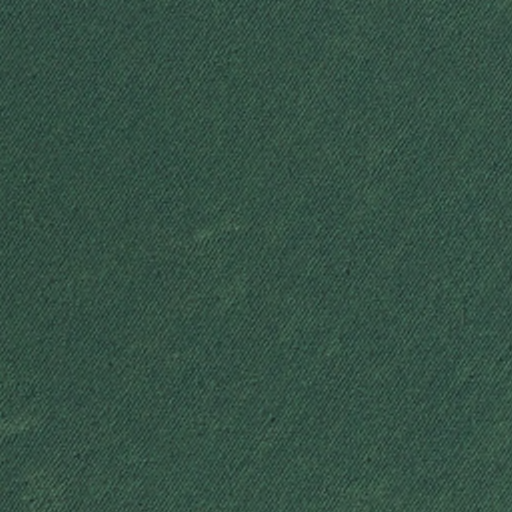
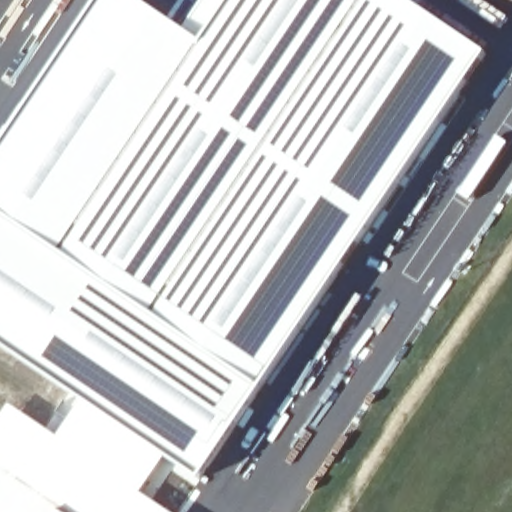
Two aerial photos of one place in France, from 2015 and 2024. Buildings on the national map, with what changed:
new [(7,137),(101,0),(142,0),(184,29),(203,0),(411,0),(487,52),(281,358),(236,429),(197,481),(166,455),(128,427),(82,397),(0,342),(0,147),(7,137)]
new [(9,402),(57,434),(82,397),(128,427),(166,455),(141,491),(173,512),(0,512),(0,414),(9,402)]

